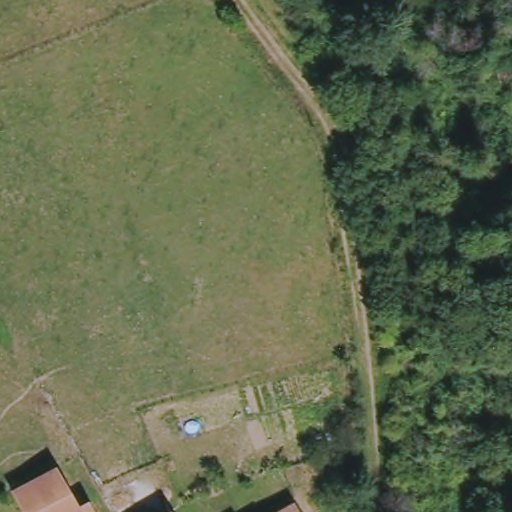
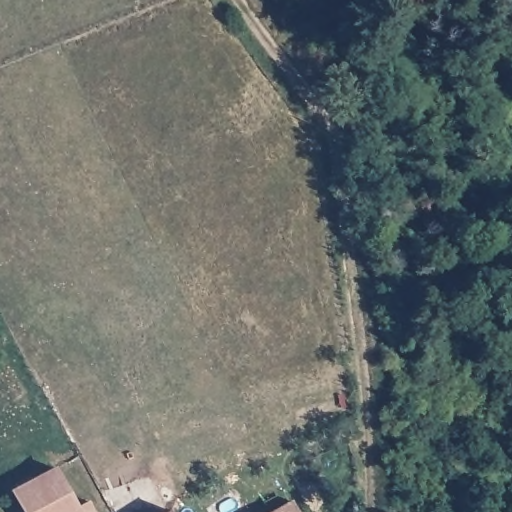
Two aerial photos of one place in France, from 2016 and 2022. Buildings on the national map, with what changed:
unchanged [(74,508),(69,512),(19,512),(7,491),(51,467),(74,508)]
unchanged [(85,500),(87,504),(91,512),(69,512),(74,508),(85,500)]
unchanged [(291,512),(267,512),(286,502),(291,512)]
unchanged [(166,512),(161,512),(165,510),(166,512)]

